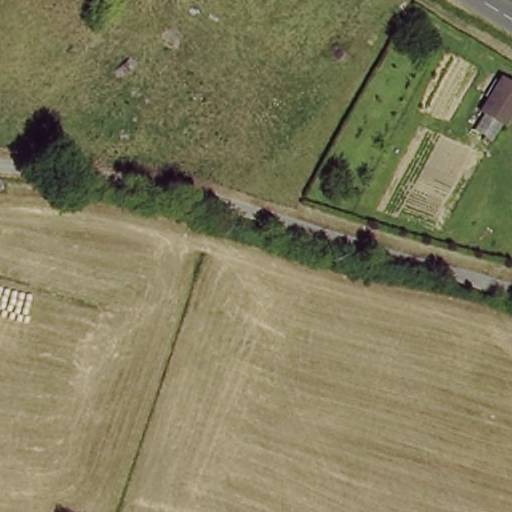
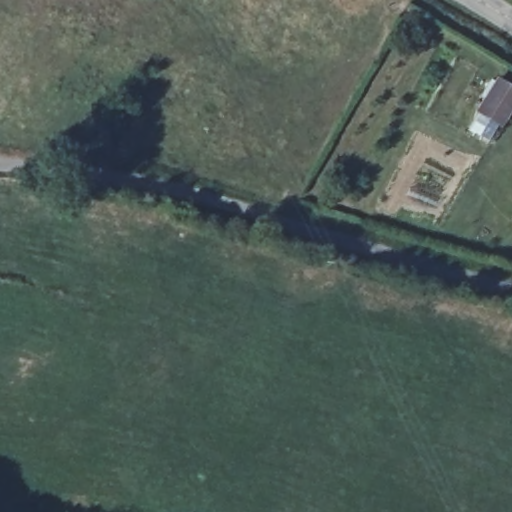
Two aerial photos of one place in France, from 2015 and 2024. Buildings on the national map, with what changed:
unchanged [(487,139),(470,125),(498,79),(512,87),(512,101),(487,139)]

